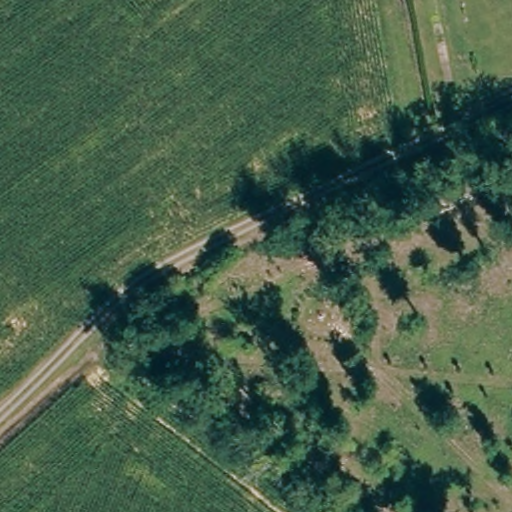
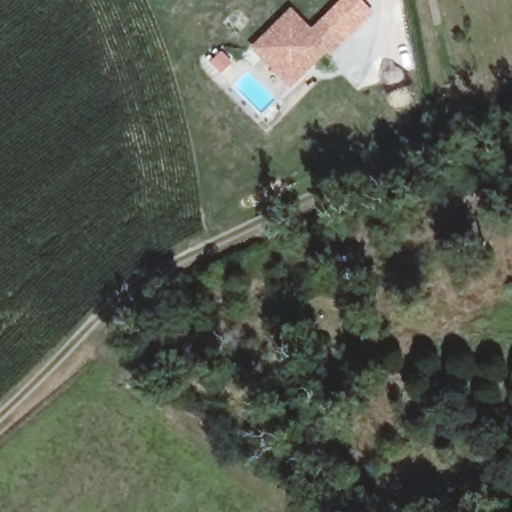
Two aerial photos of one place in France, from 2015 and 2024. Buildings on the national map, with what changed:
new [(329,59),(324,55),(289,90),(252,53),(293,11),(312,31),(323,21),(345,43),(329,59)]

